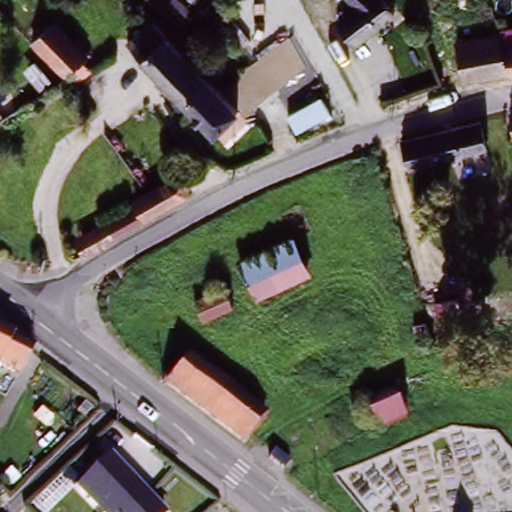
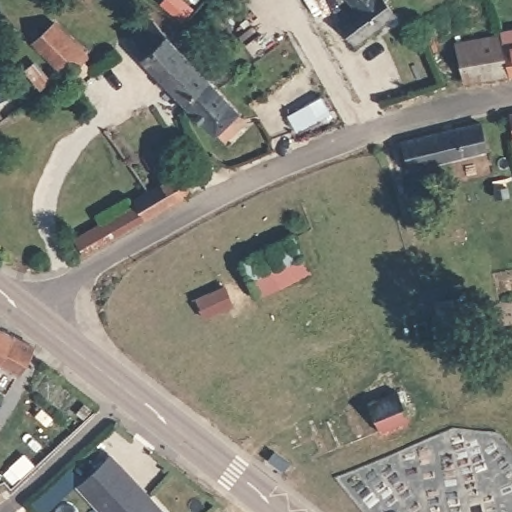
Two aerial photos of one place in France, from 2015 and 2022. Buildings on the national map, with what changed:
unchanged [(361,47),(342,17),(358,5),(352,0),(393,0),(404,11),(361,47)]
unchanged [(501,38),(496,1),(504,0),(512,0),(512,74),(467,82),(459,42),(501,38)]
unchanged [(94,64),(75,80),(71,81),(33,41),(51,22),(94,64)]
unchanged [(206,133),(186,111),(121,42),(143,22),(194,76),(204,66),(213,75),(202,84),(207,90),(228,113),(206,133)]
unchanged [(3,83),(14,101),(0,112),(0,84),(3,83)]
unchanged [(336,114),(301,130),(289,114),(326,94),(336,114)]
unchanged [(512,116),(512,124),(511,116),(512,116)]
unchanged [(405,142),(479,122),(486,150),(411,166),(405,142)]
unchanged [(73,240),(109,217),(107,212),(196,167),(199,190),(83,260),(73,240)]
unchanged [(261,298),(243,257),(286,240),(304,281),(261,298)]
unchanged [(434,272),(411,278),(404,245),(428,240),(434,272)]
unchanged [(198,294),(232,282),(236,307),(207,321),(198,294)]
unchanged [(436,346),(434,340),(429,317),(449,312),(456,341),(436,346)]
unchanged [(40,342),(23,375),(0,363),(0,322),(40,342)]
demolished [(251,440),(176,385),(183,375),(193,361),(269,416),(251,440)]
unchanged [(380,402),(404,393),(413,420),(389,428),(380,402)]
unchanged [(109,454),(164,512),(103,512),(76,483),(109,454)]

